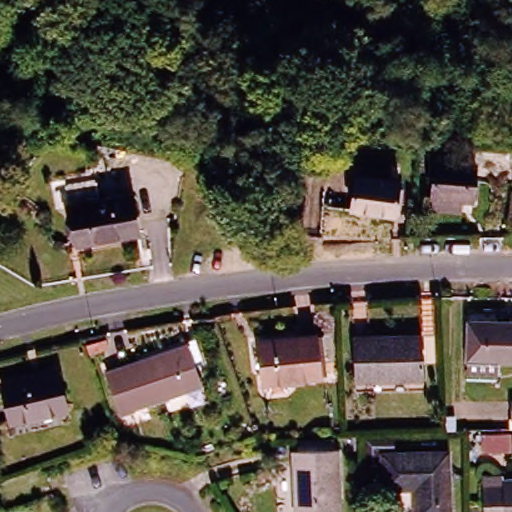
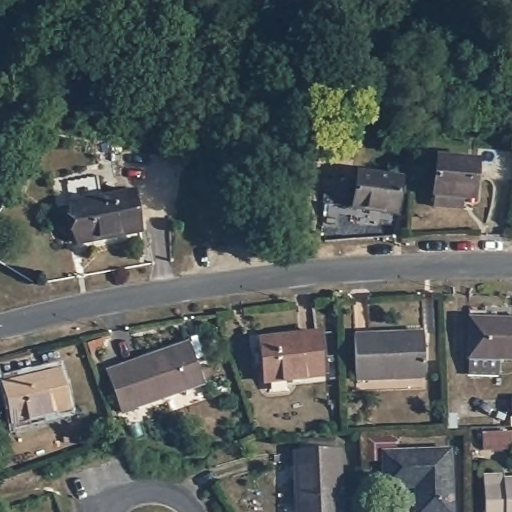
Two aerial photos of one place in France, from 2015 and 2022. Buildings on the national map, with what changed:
unchanged [(431,195),(432,185),(435,148),(475,151),(472,189),(465,188),(464,198),(431,195)]
unchanged [(400,209),(356,203),(361,169),(404,174),(400,209)]
unchanged [(133,227),(71,239),(64,200),(125,187),(133,227)]
unchanged [(499,373),(470,372),(471,319),(512,321),(512,359),(500,358),(499,373)]
unchanged [(255,334),(311,327),(311,330),(318,328),(323,368),(316,370),(260,377),(255,334)]
unchanged [(424,372),(356,375),(355,331),(422,328),(424,372)]
unchanged [(120,398),(108,365),(187,338),(201,378),(136,401),(122,406),(120,398)]
unchanged [(66,405),(10,417),(2,377),(58,365),(66,405)]
unchanged [(512,449),(483,450),(483,433),(511,432),(512,449)]
unchanged [(377,438),(390,438),(391,446),(376,446),(376,460),(366,461),(365,438),(377,438)]
unchanged [(295,445),(338,443),(341,512),(298,512),(295,445)]
unchanged [(450,512),(417,512),(416,493),(420,493),(420,486),(385,487),(385,453),(448,451),(450,512)]
unchanged [(512,479),(512,512),(487,512),(486,476),(503,476),(503,479),(512,479)]

